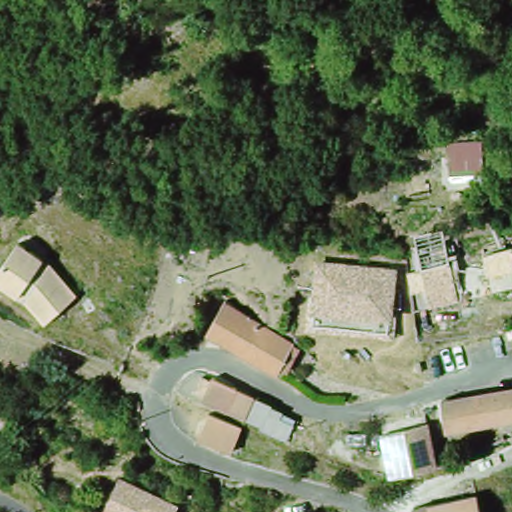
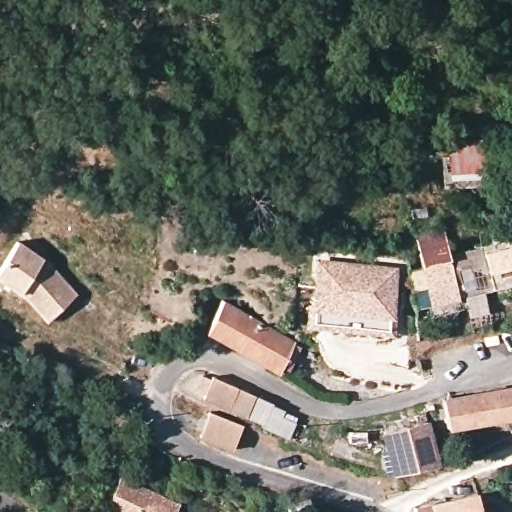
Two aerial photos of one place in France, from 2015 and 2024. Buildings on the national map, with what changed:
unchanged [(448,143),(482,141),(484,173),(450,175),(448,143)]
unchanged [(421,309),(417,291),(413,292),(410,271),(423,267),(415,234),(443,230),(450,261),(457,258),(464,298),(460,300),(431,306),(421,309)]
unchanged [(486,253),(485,252),(506,244),(508,248),(512,247),(512,285),(494,290),(490,275),(486,253)]
unchanged [(23,301),(0,287),(0,264),(11,246),(43,263),(72,293),(43,323),(23,301)]
unchanged [(321,257),(402,265),(395,323),(315,316),(321,257)]
unchanged [(207,334),(224,306),(252,323),(237,352),(207,334)]
unchanged [(278,369),(275,376),(236,353),(237,352),(252,323),(290,346),(290,348),(298,353),(291,367),(287,373),(278,369)]
unchanged [(271,416),(298,427),(292,443),(262,430),(263,426),(248,420),(230,413),(231,412),(205,401),(216,378),(239,389),(255,397),(255,399),(274,408),(271,416)]
unchanged [(441,400),(512,388),(512,419),(446,430),(441,400)]
unchanged [(198,439),(208,414),(242,429),(232,453),(198,439)]
unchanged [(386,428),(433,418),(444,464),(397,471),(386,428)]
unchanged [(182,504),(177,512),(108,512),(104,510),(121,476),(182,504)]
unchanged [(481,490),(486,512),(417,512),(416,505),(481,490)]

